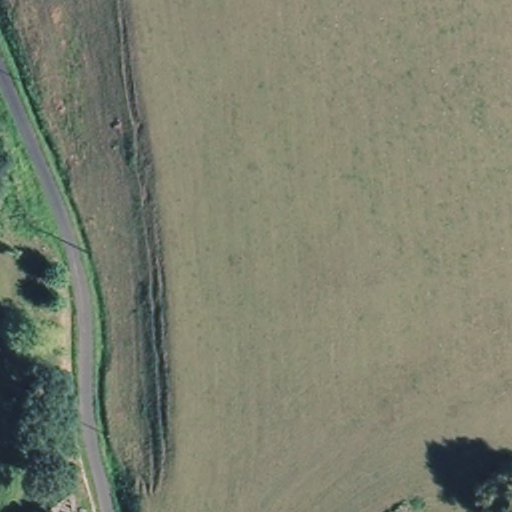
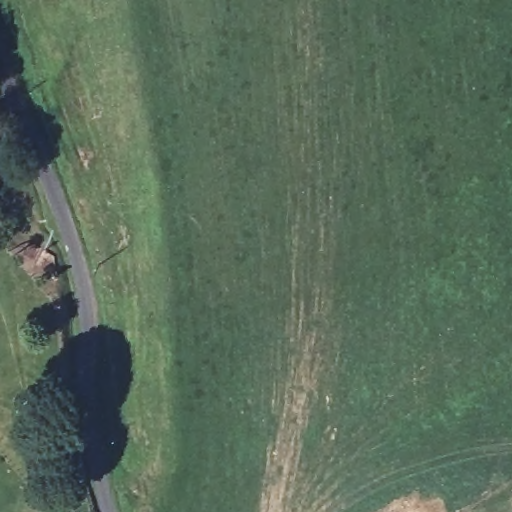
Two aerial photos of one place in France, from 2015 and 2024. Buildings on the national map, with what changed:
[]

